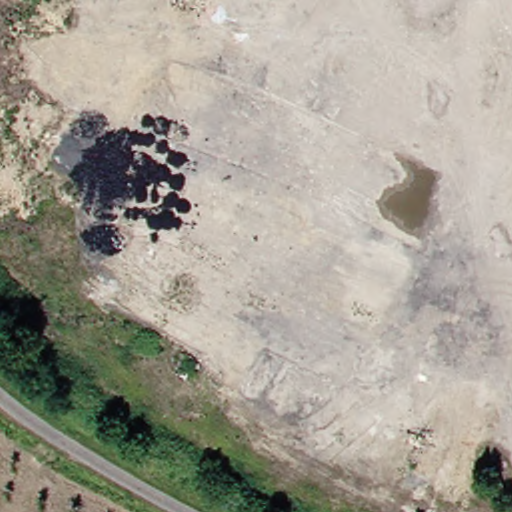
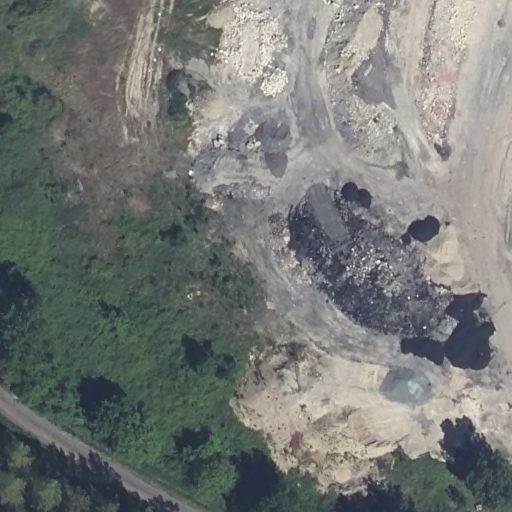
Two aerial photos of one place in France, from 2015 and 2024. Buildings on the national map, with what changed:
[]

